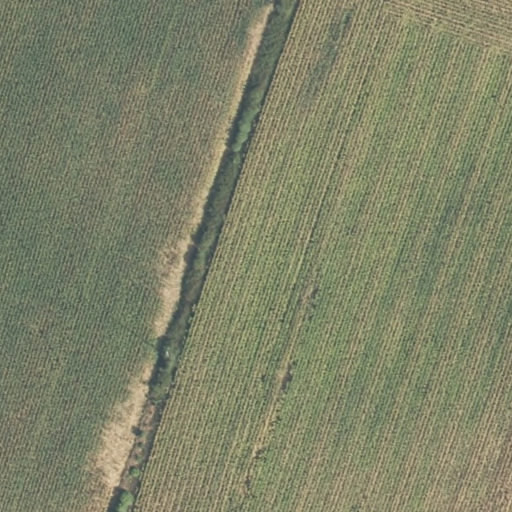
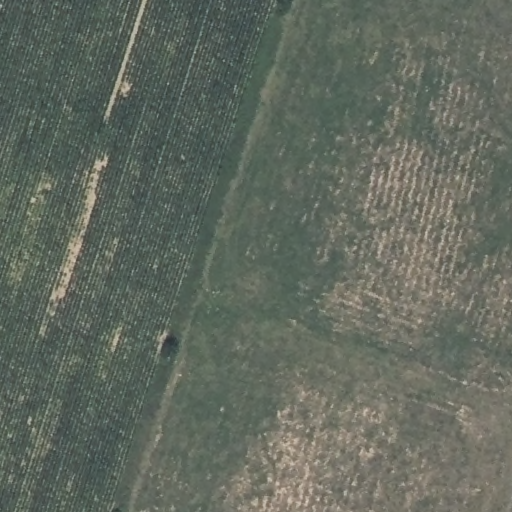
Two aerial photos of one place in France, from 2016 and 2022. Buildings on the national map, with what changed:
[]

